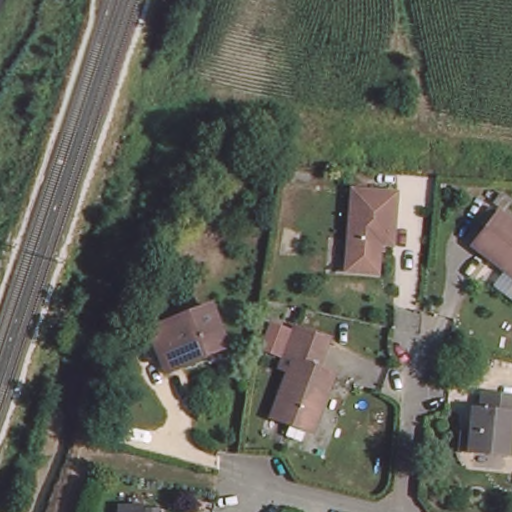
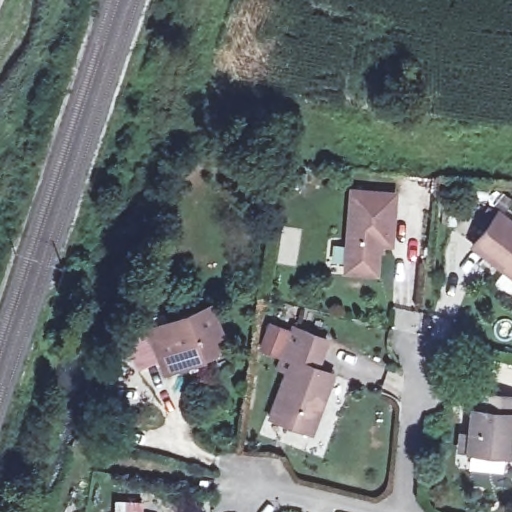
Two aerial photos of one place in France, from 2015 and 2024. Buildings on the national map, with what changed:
unchanged [(375,271),(344,270),(349,189),(392,192),(389,243),(377,242),(375,271)]
unchanged [(475,246),(501,213),(512,222),(512,276),(475,246)]
unchanged [(162,358),(154,328),(215,311),(226,350),(202,356),(205,363),(184,369),(166,374),(162,358)]
unchanged [(262,407),(294,323),(329,336),(321,356),(312,352),(309,359),(335,369),(313,426),(262,407)]
unchanged [(465,434),(476,435),(478,412),(487,413),(489,394),(512,396),(512,454),(475,450),(464,449),(465,434)]

